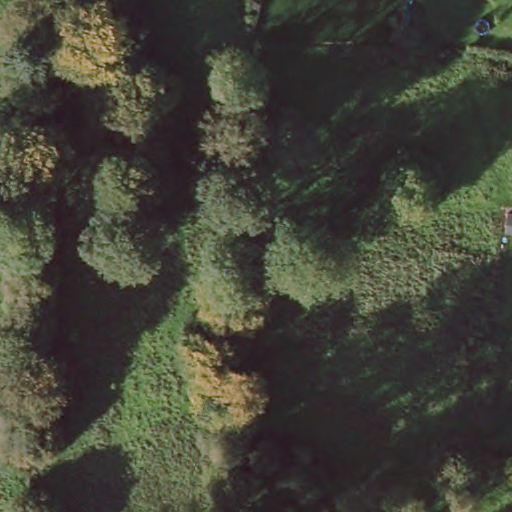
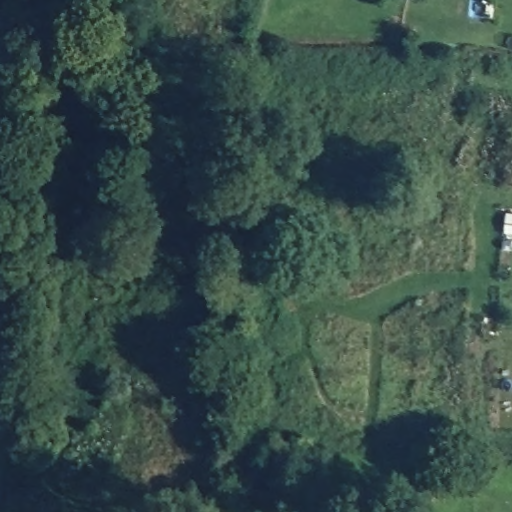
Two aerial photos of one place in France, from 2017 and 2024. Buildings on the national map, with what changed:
unchanged [(512,53),(508,53),(510,39),(512,39),(512,53)]

